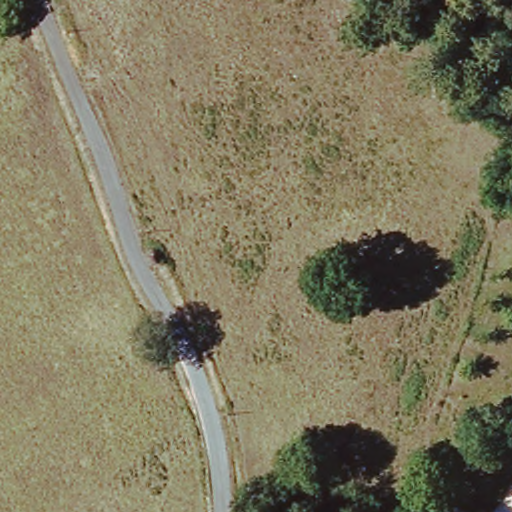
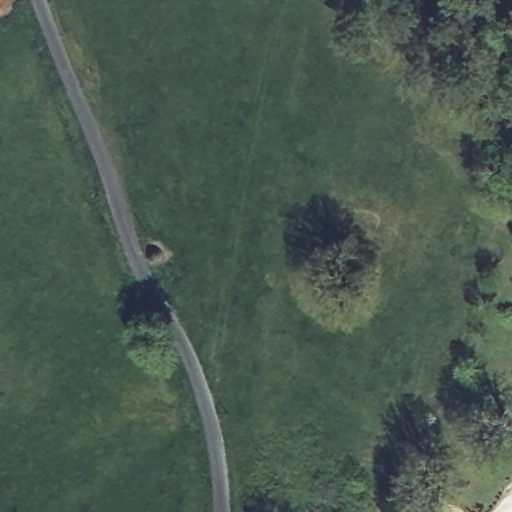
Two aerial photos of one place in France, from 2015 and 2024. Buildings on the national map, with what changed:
unchanged [(170,261),(167,264),(163,267),(160,267),(156,267),(153,264),(150,261),(150,257),(150,254),(153,250),(156,248),(160,247),(163,248),(167,250),(170,254),(170,257),(170,261)]

